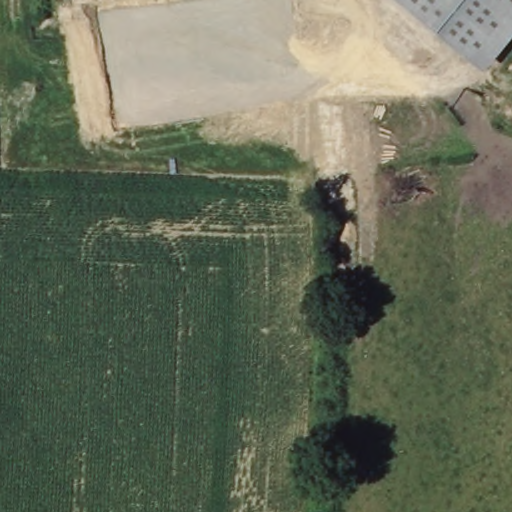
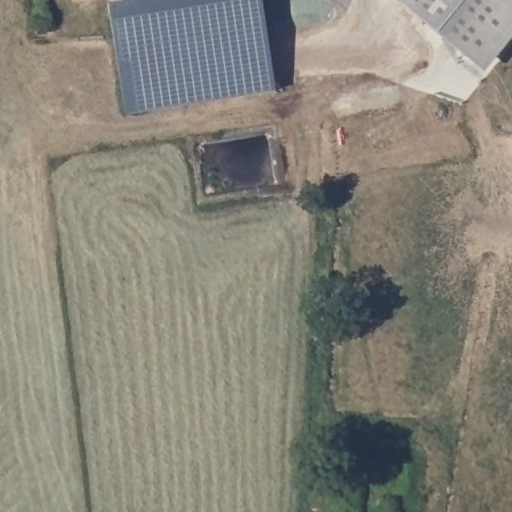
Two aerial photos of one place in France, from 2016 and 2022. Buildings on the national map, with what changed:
new [(261,9),(271,6),(276,36),(265,38),(273,90),(125,113),(109,12),(187,0),(260,0),(261,9)]
unchanged [(394,1),(395,0),(512,0),(512,25),(476,68),(394,1)]

